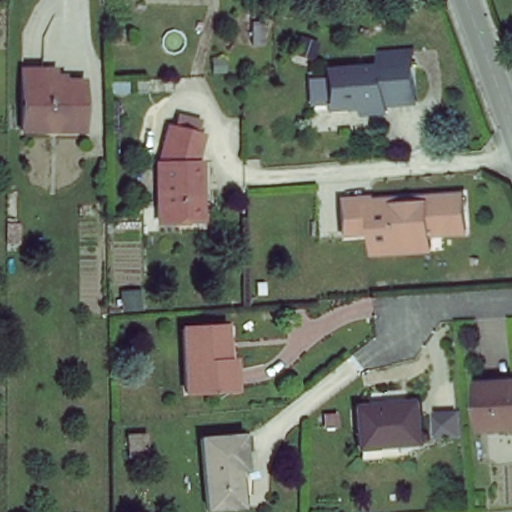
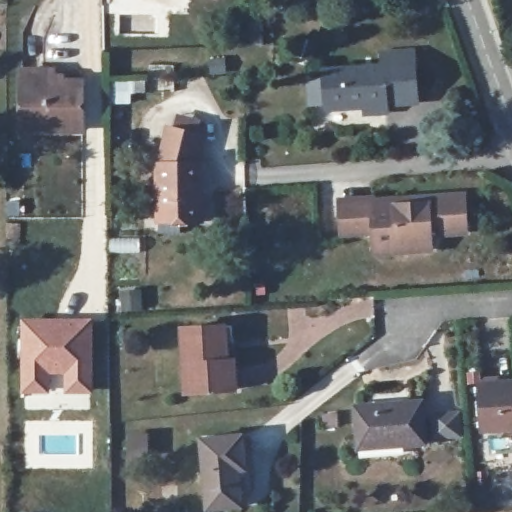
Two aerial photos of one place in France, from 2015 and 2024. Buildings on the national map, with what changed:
unchanged [(365,104),(329,105),(327,65),(384,64),(383,52),(413,51),(414,67),(415,102),(384,103),(384,110),(365,111),(365,104)]
unchanged [(45,134),(20,134),(20,73),(52,73),(53,85),(82,85),(82,126),(82,134),(45,134)]
unchanged [(157,160),(168,123),(209,132),(200,161),(206,159),(207,222),(156,223),(157,160)]
unchanged [(404,255),(379,256),(378,236),(345,236),(344,206),(373,205),(375,212),(412,210),(412,201),(469,199),(472,236),(434,238),(434,243),(434,253),(404,255)]
new [(140,236),(140,253),(109,253),(108,236),(140,236)]
new [(143,286),(145,309),(119,312),(117,287),(143,286)]
new [(21,316),(93,316),(94,393),(64,393),(63,374),(50,374),(50,393),(21,393),(21,316)]
unchanged [(187,387),(183,327),(223,324),(227,359),(233,359),(235,383),(187,387)]
unchanged [(487,429),(483,387),(512,384),(512,426),(487,429)]
unchanged [(360,439),(359,411),(424,407),(426,442),(389,444),(360,446),(360,439)]
unchanged [(206,501),(202,434),(242,431),(244,462),(236,462),(239,499),(206,501)]

